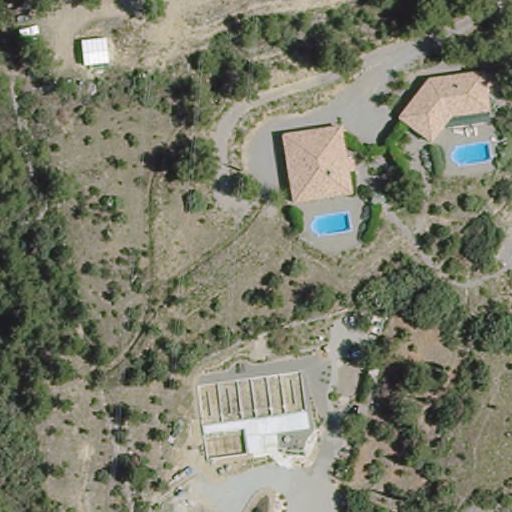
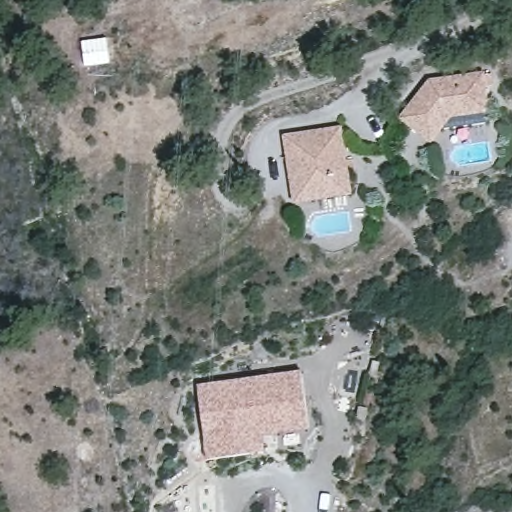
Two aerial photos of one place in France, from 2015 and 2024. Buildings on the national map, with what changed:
unchanged [(422,79),(480,72),(485,114),(447,118),(433,143),(392,119),(422,79)]
unchanged [(279,139),(340,132),(350,201),(287,209),(279,139)]
new [(301,371),(310,429),(262,436),(264,451),(206,459),(197,385),(301,371)]

